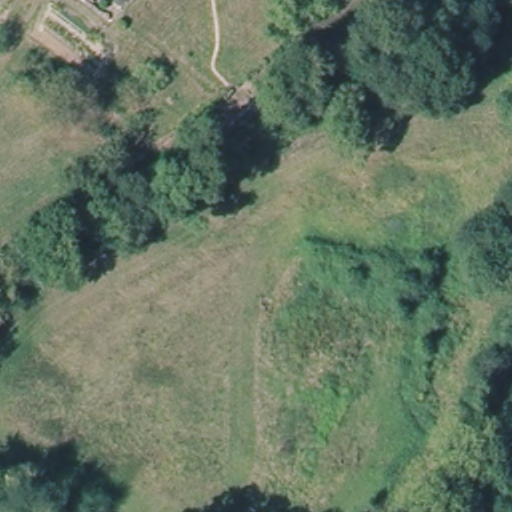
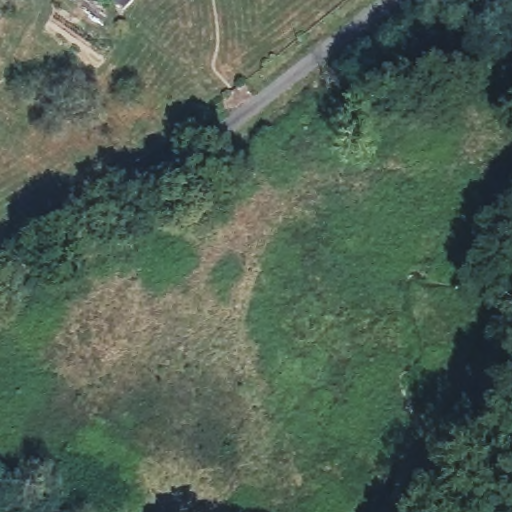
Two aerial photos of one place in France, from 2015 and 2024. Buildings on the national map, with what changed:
[]

